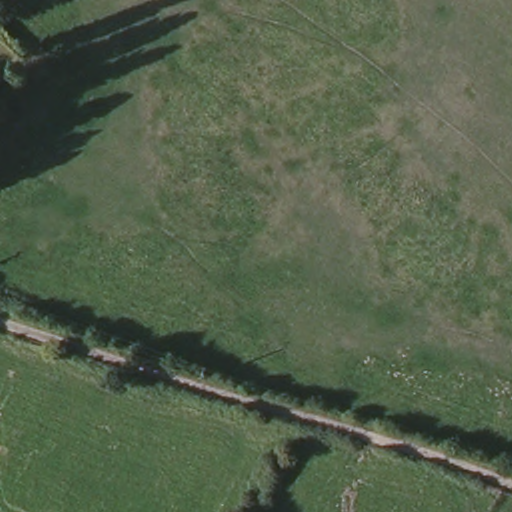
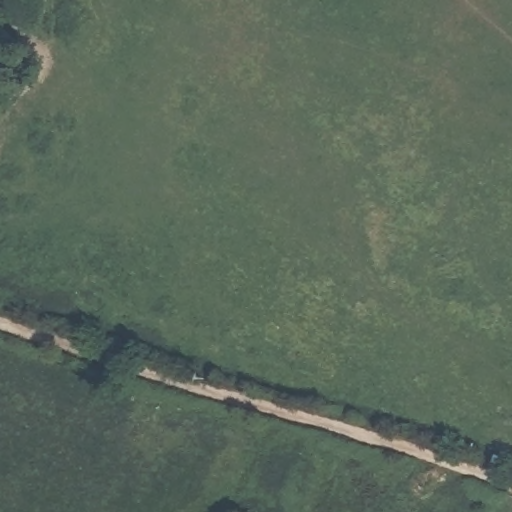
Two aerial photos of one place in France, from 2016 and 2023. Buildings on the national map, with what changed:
unchanged [(0,81),(0,75),(3,78),(0,81)]

